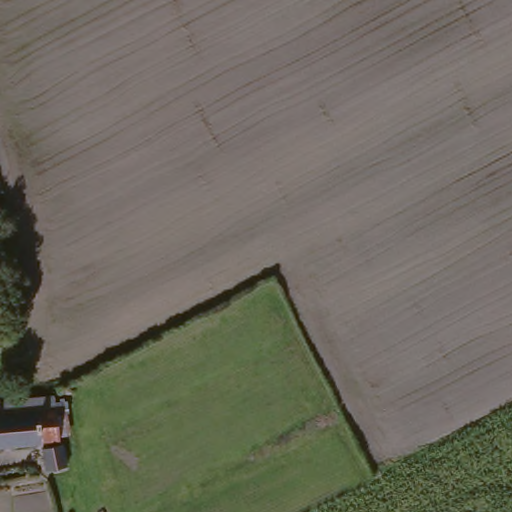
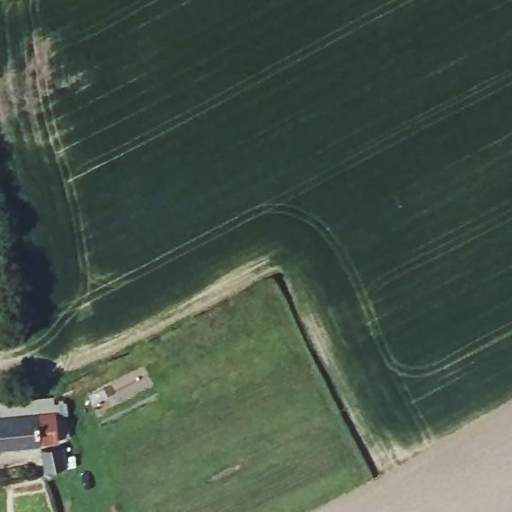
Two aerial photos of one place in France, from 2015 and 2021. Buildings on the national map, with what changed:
unchanged [(52,397),(56,442),(0,450),(0,404),(52,397)]
unchanged [(43,471),(43,452),(63,451),(64,470),(62,470),(43,471)]

